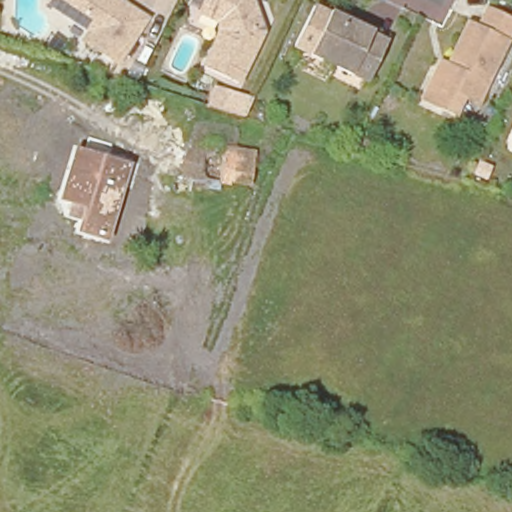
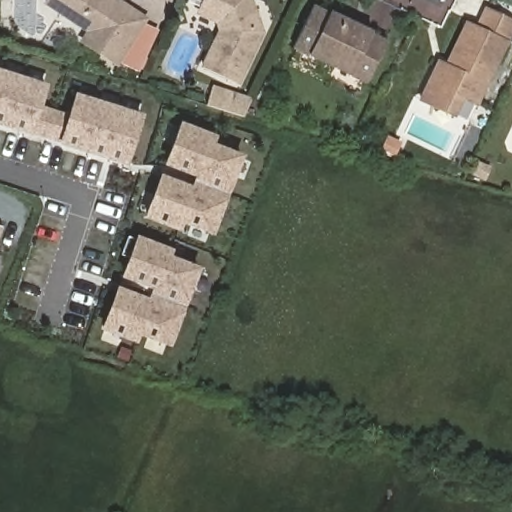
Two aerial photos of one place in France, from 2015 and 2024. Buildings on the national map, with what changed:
unchanged [(120,53),(83,36),(90,23),(45,1),(46,0),(134,0),(143,5),(120,53)]
unchanged [(237,81),(204,66),(222,29),(218,20),(201,11),(207,0),(253,0),(261,31),(237,81)]
unchanged [(374,26),(373,29),(388,36),(369,76),(298,44),(318,3),(332,10),(333,8),(374,26)]
unchanged [(472,21),(480,25),(488,8),(512,19),(512,32),(480,101),(469,97),(462,114),(426,98),(442,66),(445,59),(453,62),(472,21)]
new [(158,30),(139,71),(121,64),(118,68),(79,43),(83,36),(120,53),(135,21),(158,30)]
new [(45,86),(30,132),(0,122),(0,72),(45,86)]
new [(215,90),(249,100),(241,116),(210,107),(215,90)]
new [(68,114),(74,93),(144,114),(128,166),(58,145),(60,141),(30,132),(39,104),(68,114)]
new [(181,232),(143,218),(180,121),(219,136),(216,144),(244,156),(214,233),(184,223),(181,232)]
demolished [(130,161),(108,236),(80,228),(84,216),(71,211),(74,199),(65,196),(78,146),(130,161)]
demolished [(218,159),(220,149),(252,154),(247,185),(219,180),(219,182),(181,176),(184,153),(218,159)]
new [(119,290),(149,302),(155,287),(124,276),(138,239),(170,251),(168,257),(197,268),(168,344),(139,332),(136,340),(104,328),(119,290)]

